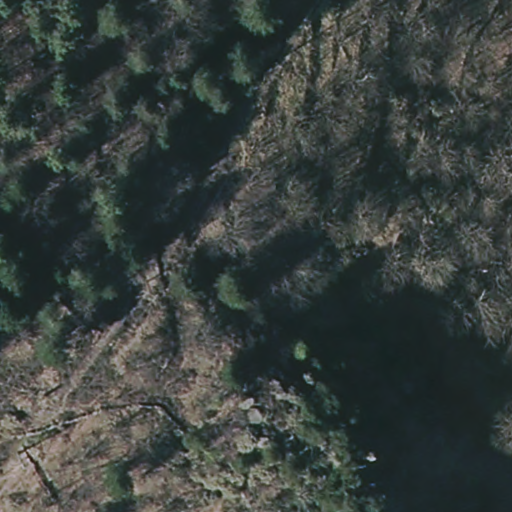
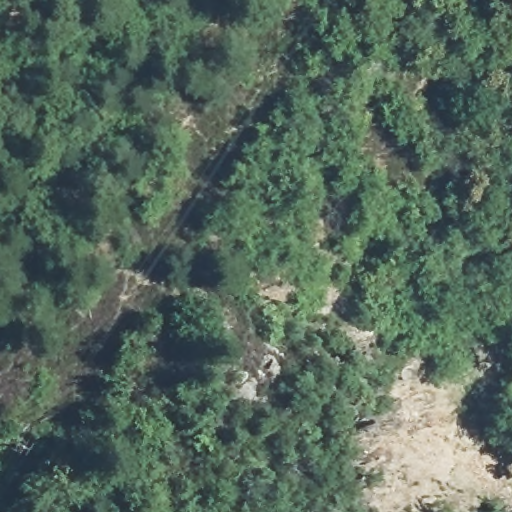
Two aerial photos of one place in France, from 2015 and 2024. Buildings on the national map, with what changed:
[]

